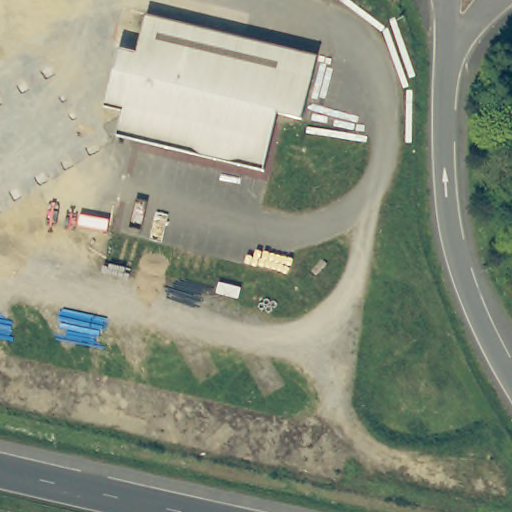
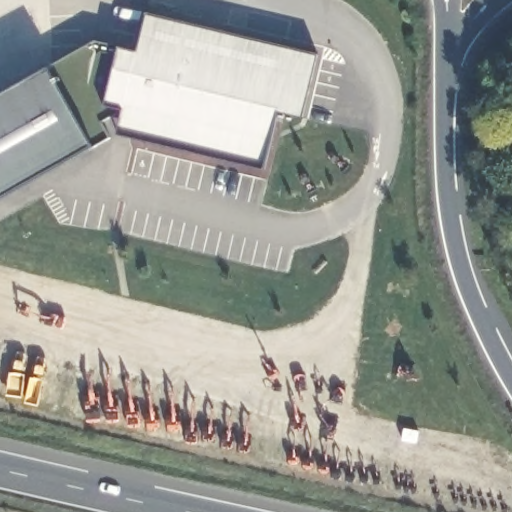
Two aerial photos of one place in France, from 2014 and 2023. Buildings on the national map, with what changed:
unchanged [(308,119),(283,112),(269,172),(121,136),(126,112),(108,107),(123,46),(141,51),(150,12),(323,54),(308,119)]
new [(121,110),(99,122),(109,139),(91,148),(0,200),(0,97),(47,71),(96,42),(123,46),(108,107),(121,110)]

